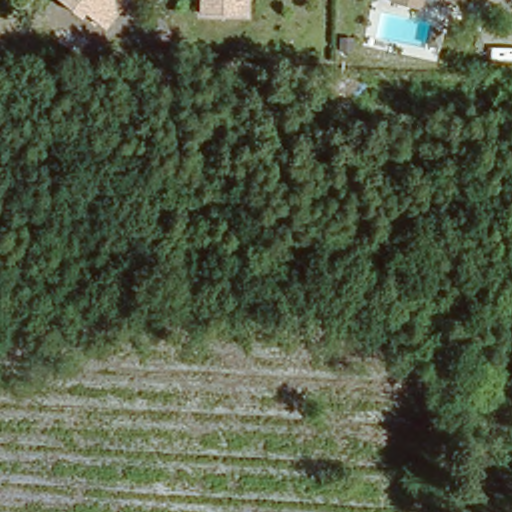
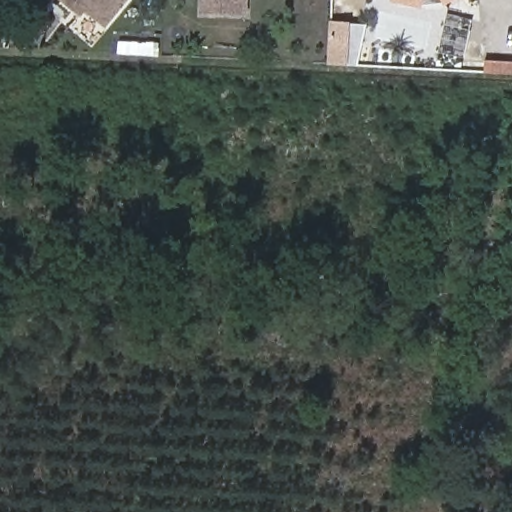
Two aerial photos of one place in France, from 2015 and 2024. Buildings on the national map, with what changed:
unchanged [(107,29),(87,12),(82,19),(59,0),(130,0),(107,29)]
unchanged [(247,10),(204,11),(204,0),(246,0),(247,10)]
unchanged [(420,7),(393,0),(422,0),(420,7)]
unchanged [(442,7),(438,0),(454,0),(442,7)]
new [(330,22),(368,24),(367,42),(363,42),(360,67),(328,65),(330,22)]

